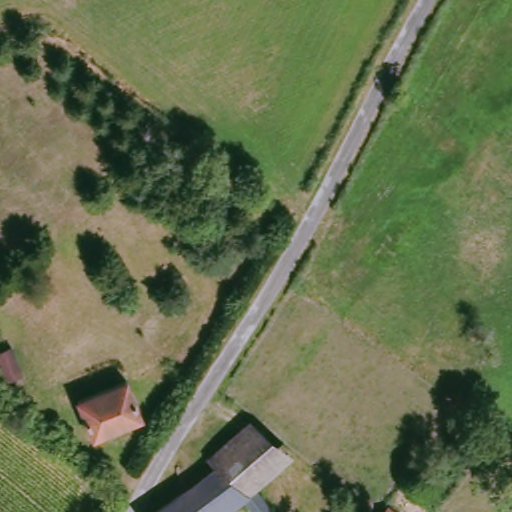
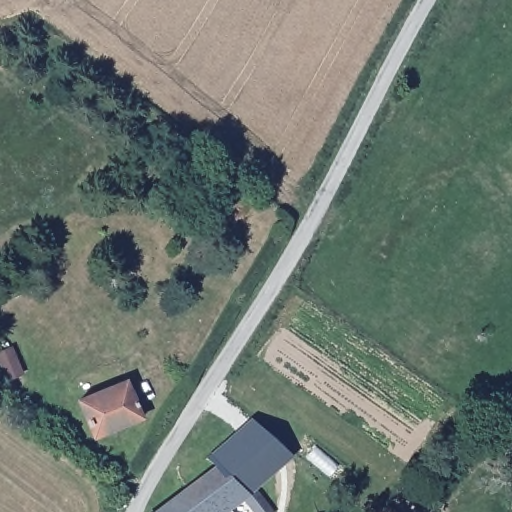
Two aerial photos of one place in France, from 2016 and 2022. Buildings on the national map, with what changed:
unchanged [(144,417),(97,440),(79,404),(129,382),(144,417)]
unchanged [(289,455),(254,484),(251,487),(219,457),(213,451),(254,418),(289,455)]
unchanged [(251,487),(254,484),(271,505),(263,512),(253,512),(238,497),(219,512),(149,512),(148,508),(146,506),(151,502),(175,480),(181,487),(219,457),(251,487)]
unchanged [(402,512),(381,512),(387,501),(402,512)]

